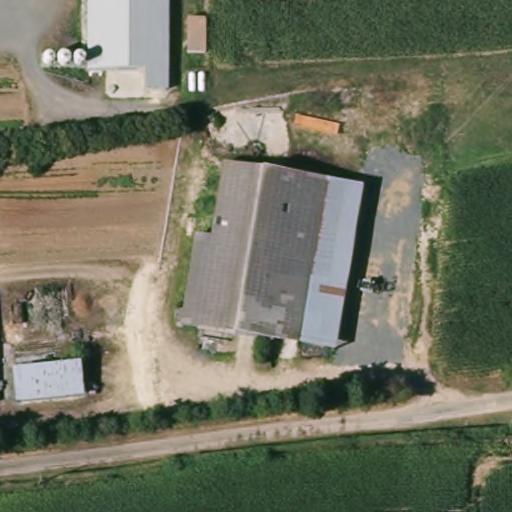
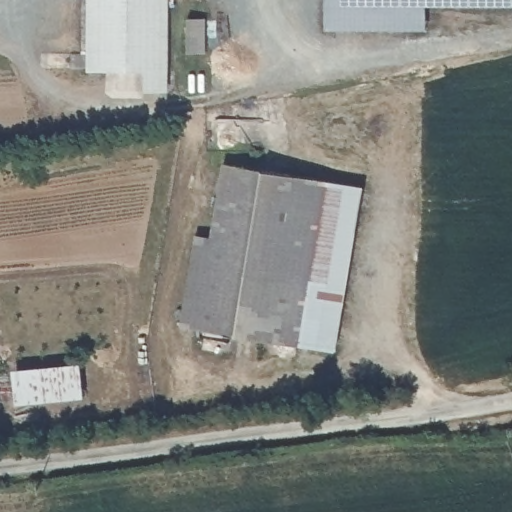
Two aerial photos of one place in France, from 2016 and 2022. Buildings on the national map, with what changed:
unchanged [(169,69),(170,89),(150,89),(149,69),(94,70),(93,0),(170,0),(171,69),(169,69)]
new [(512,0),(512,6),(425,6),(426,31),(325,30),(325,0),(512,0)]
unchanged [(368,184),(340,346),(188,321),(201,236),(218,239),(231,160),(368,184)]
unchanged [(0,403),(0,368),(84,360),(85,393),(0,403)]

